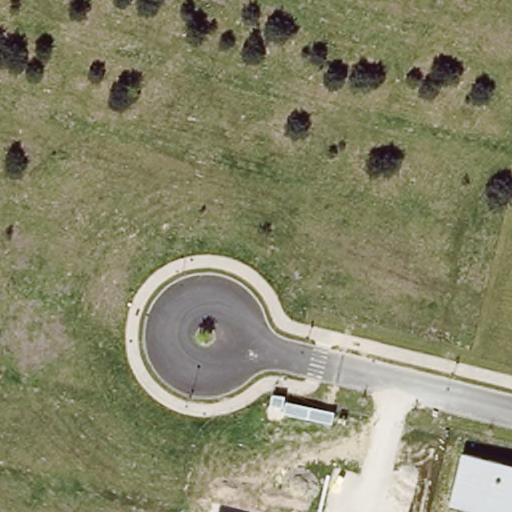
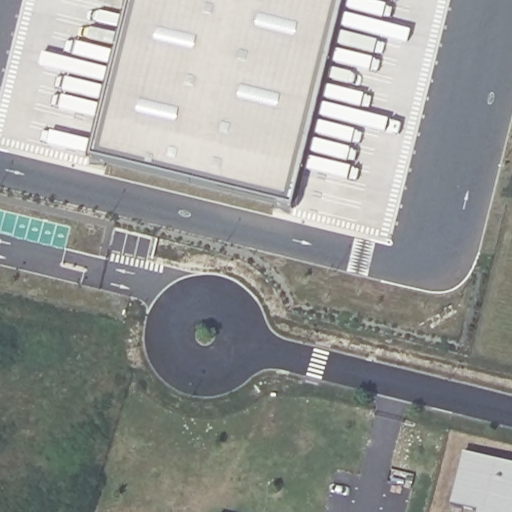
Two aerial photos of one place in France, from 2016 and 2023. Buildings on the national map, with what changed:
new [(291,207),(89,158),(128,0),(342,0),(291,207)]
unchanged [(451,504),(463,452),(512,464),(512,512),(478,512),(478,511),(451,504)]

